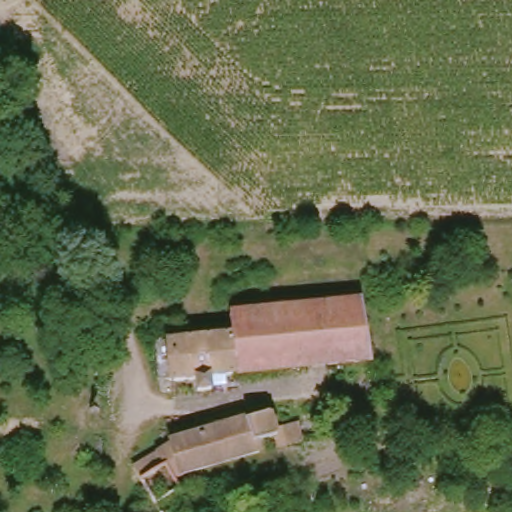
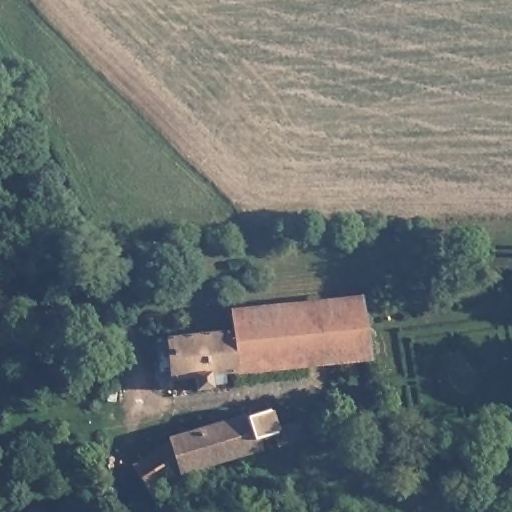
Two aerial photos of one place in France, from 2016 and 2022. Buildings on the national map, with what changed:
unchanged [(369,306),(378,363),(223,382),(224,394),(208,395),(206,384),(185,386),(184,382),(171,383),(166,347),(243,337),(241,319),(369,306)]
unchanged [(167,448),(166,443),(266,416),(271,434),(296,428),(300,445),(189,476),(187,476),(169,481),(162,467),(138,482),(131,470),(167,448)]
unchanged [(169,481),(187,512),(156,512),(138,482),(162,467),(169,481)]

